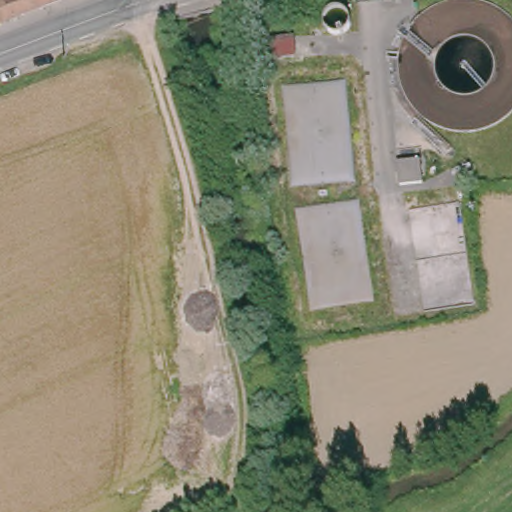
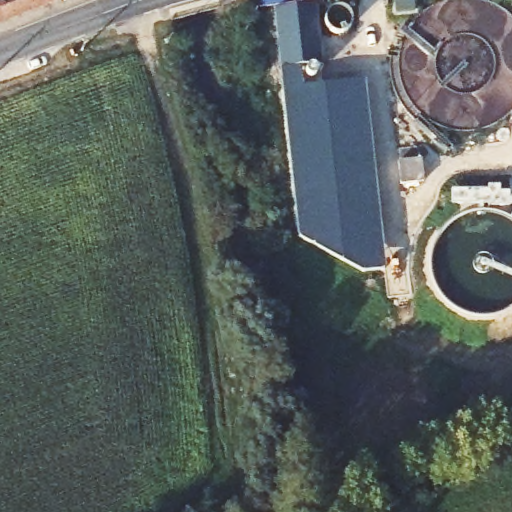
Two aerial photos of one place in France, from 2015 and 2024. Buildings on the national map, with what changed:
unchanged [(40,0),(10,12),(0,16),(0,0),(40,0)]
new [(320,64),(298,66),(300,86),(363,81),(384,270),(360,273),(298,239),(273,11),(315,5),(320,64)]
unchanged [(328,9),(335,6),(345,11),(347,19),(347,28),(337,31),(327,26),(323,16),(328,9)]
unchanged [(416,157),(418,184),(397,185),(395,159),(416,157)]

